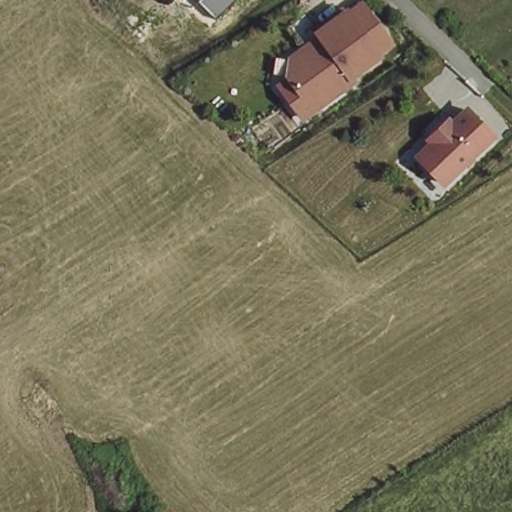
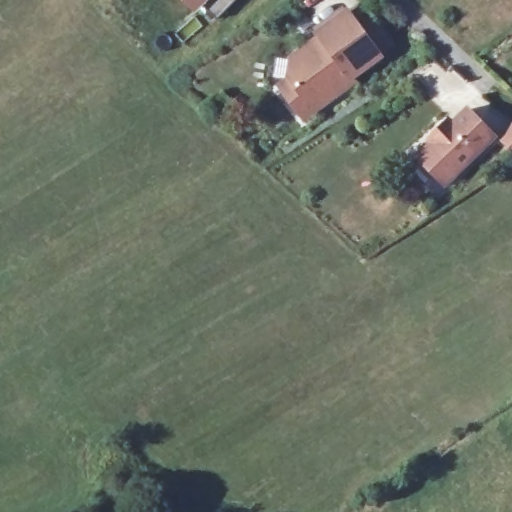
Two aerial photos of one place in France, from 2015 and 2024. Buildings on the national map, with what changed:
unchanged [(198,0),(199,0),(236,0),(218,20),(198,0)]
unchanged [(394,44),(354,74),(356,78),(303,115),(275,82),(283,76),(288,54),(314,36),(311,30),(349,3),(355,9),(364,0),(394,44)]
unchanged [(499,132),(446,182),(421,157),(434,144),(426,133),(447,110),(452,117),(468,100),(499,132)]

